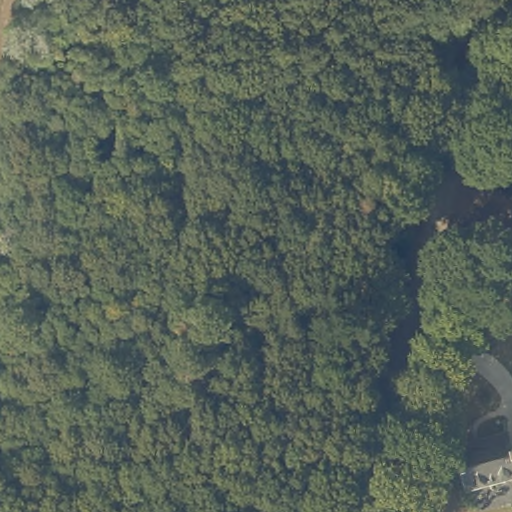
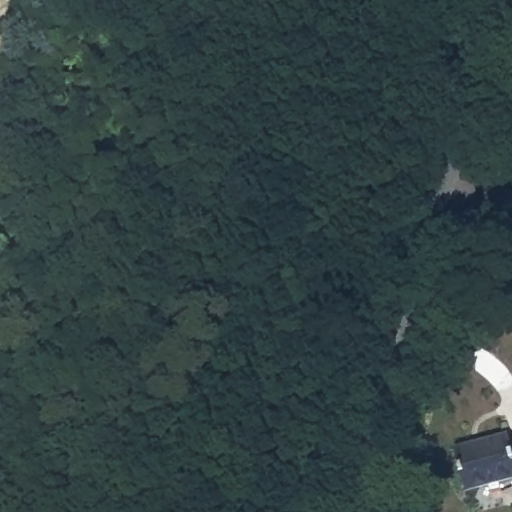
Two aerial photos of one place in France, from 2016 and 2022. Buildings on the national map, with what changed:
unchanged [(512,440),(512,470),(466,484),(455,446),(506,430),(508,441),(512,440)]

